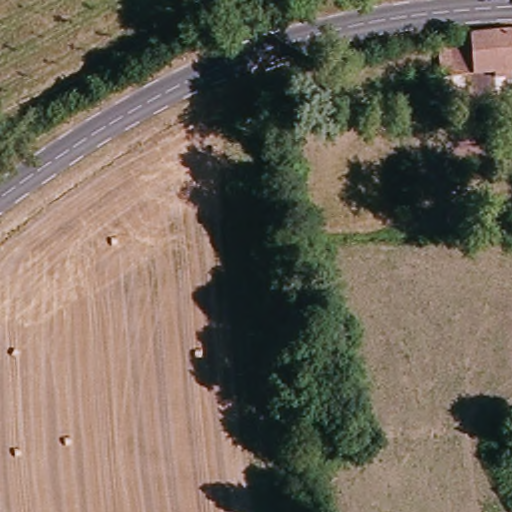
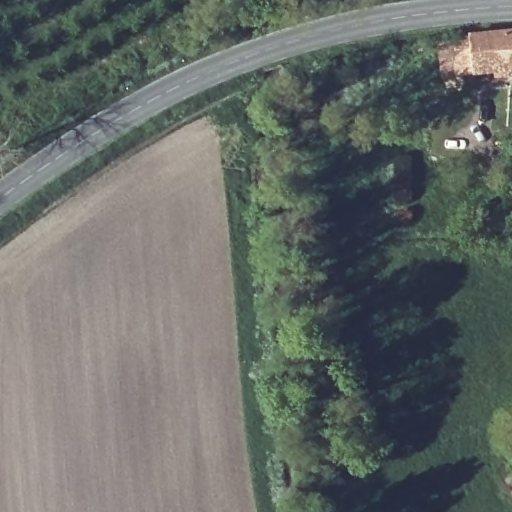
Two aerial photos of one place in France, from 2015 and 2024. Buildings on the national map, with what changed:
unchanged [(511,73),(461,74),(457,40),(510,32),(512,33),(512,73),(511,73)]

